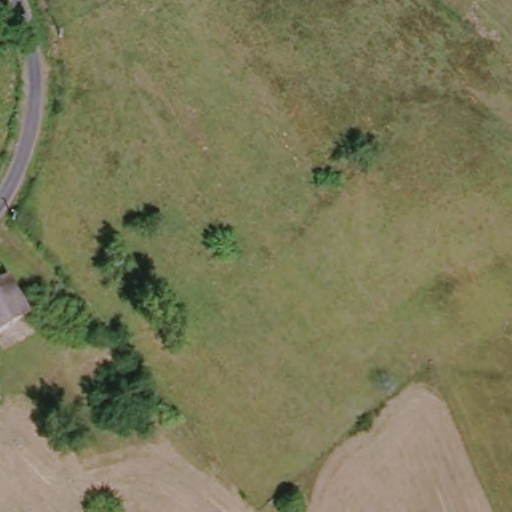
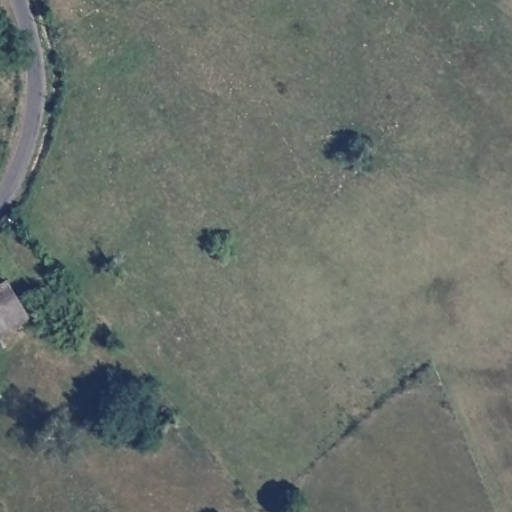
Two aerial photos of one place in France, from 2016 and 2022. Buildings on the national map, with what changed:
unchanged [(30,311),(0,328),(0,277),(7,273),(30,311)]

